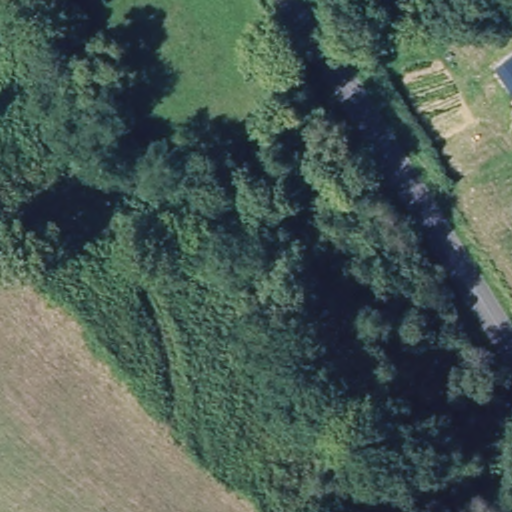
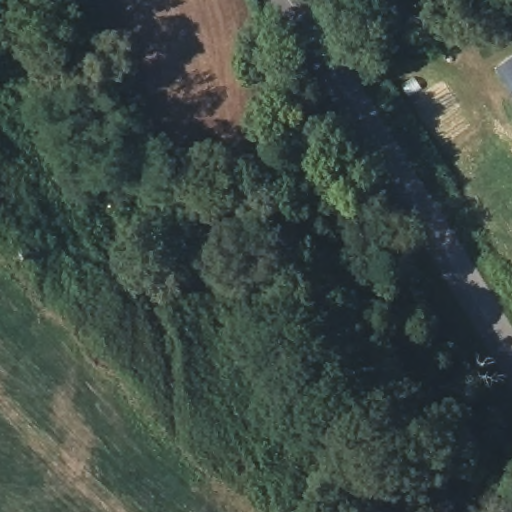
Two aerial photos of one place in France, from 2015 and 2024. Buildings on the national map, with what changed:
unchanged [(512,59),(512,93),(496,71),(512,59)]

